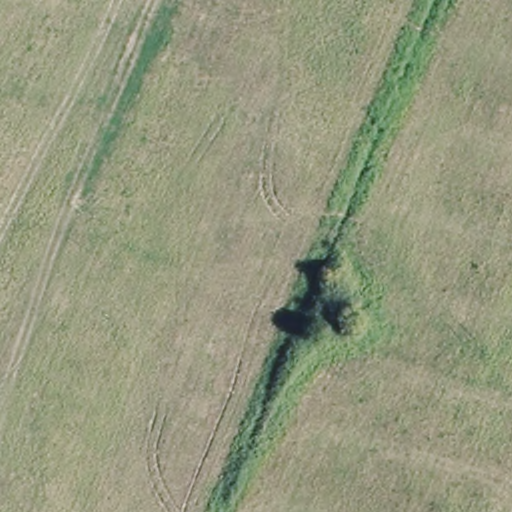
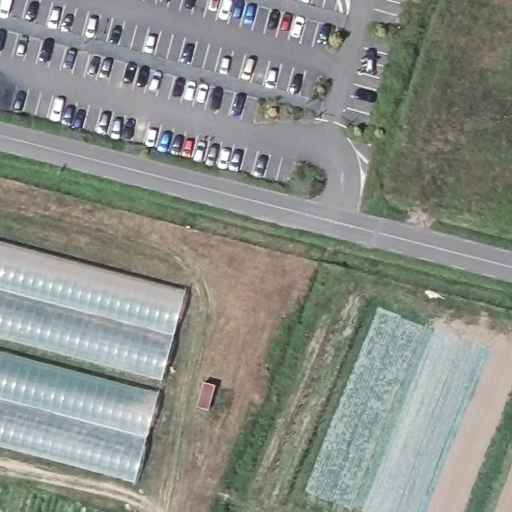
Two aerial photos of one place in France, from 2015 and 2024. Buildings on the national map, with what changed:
new [(0,240),(185,289),(136,478),(0,444),(0,240)]

